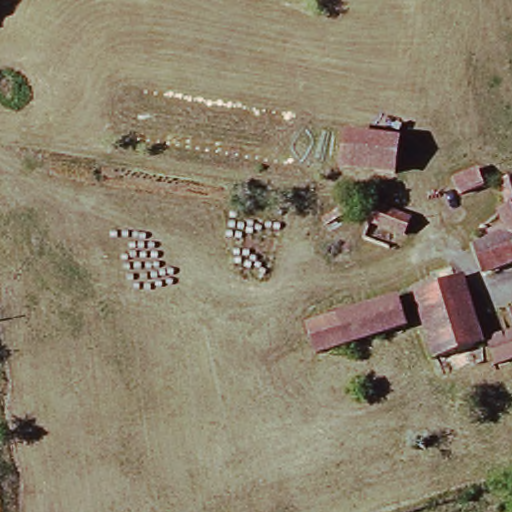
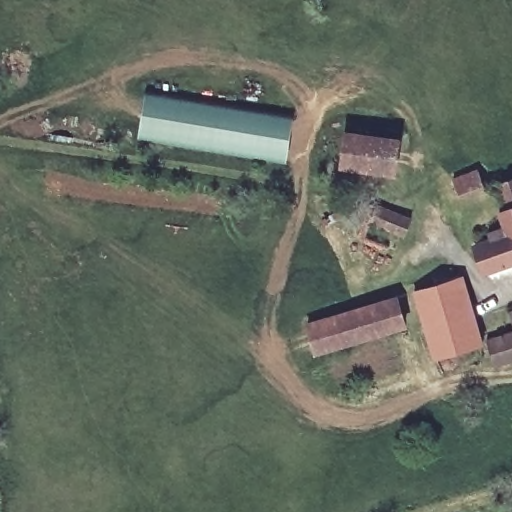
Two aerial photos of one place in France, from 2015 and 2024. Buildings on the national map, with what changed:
new [(285,163),(138,140),(145,94),(292,117),(285,163)]
unchanged [(394,177),(345,172),(347,139),(397,144),(394,177)]
unchanged [(455,180),(481,173),(487,192),(460,200),(455,180)]
unchanged [(512,186),(512,218),(502,189),(512,186)]
unchanged [(379,211),(380,207),(415,221),(409,240),(399,237),(395,251),(368,243),(374,227),(364,221),(370,207),(379,211)]
unchanged [(474,251),(509,239),(502,221),(512,218),(512,266),(482,276),(474,251)]
unchanged [(460,282),(481,347),(435,362),(415,296),(460,282)]
unchanged [(311,327),(395,302),(404,331),(319,357),(311,327)]
unchanged [(490,347),(512,341),(512,364),(496,369),(490,347)]

